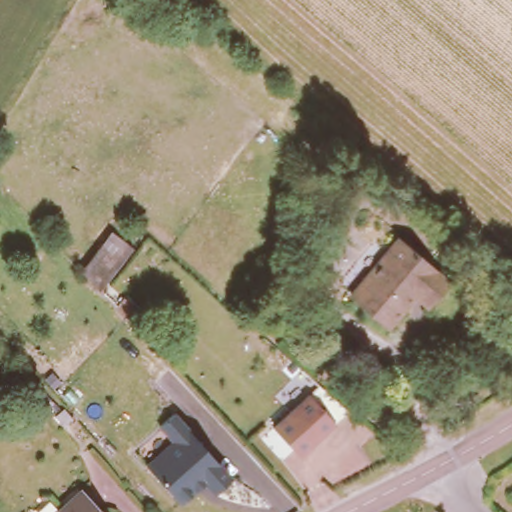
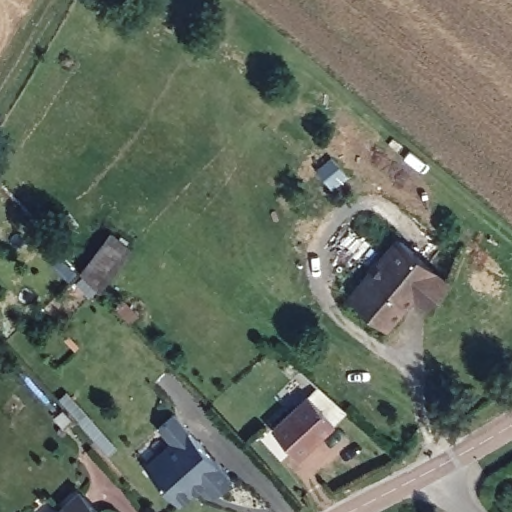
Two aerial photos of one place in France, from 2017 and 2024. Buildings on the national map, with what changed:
unchanged [(120,235),(139,253),(105,294),(86,271),(120,235)]
unchanged [(451,283),(431,305),(419,294),(389,325),(353,293),(403,237),(451,283)]
unchanged [(267,436),(272,431),(319,380),(346,406),(300,457),(296,453),(290,458),(267,436)]
unchanged [(213,494),(206,484),(180,506),(144,464),(170,441),(159,428),(175,415),(233,478),(213,494)]
unchanged [(97,512),(67,512),(83,497),(97,512)]

